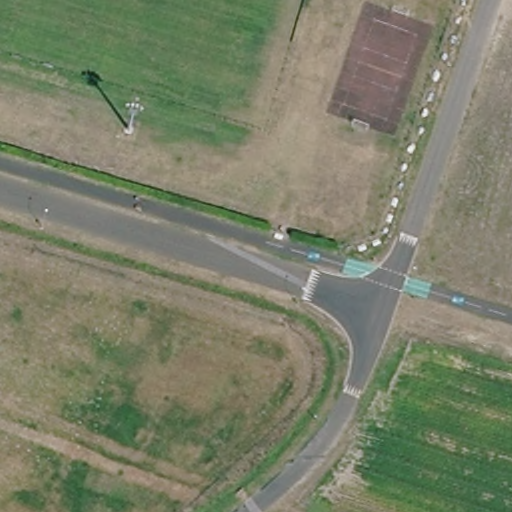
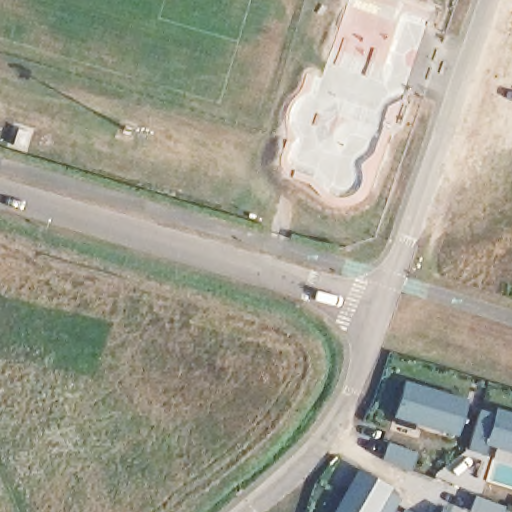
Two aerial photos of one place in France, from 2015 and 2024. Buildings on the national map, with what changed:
new [(467,398),(457,436),(393,417),(405,380),(467,398)]
new [(512,453),(486,445),(484,455),(467,449),(480,410),(495,414),(497,407),(512,412),(512,453)]
new [(358,468),(392,488),(390,492),(401,498),(394,512),(332,512),(358,468)]
new [(443,507),(451,512),(440,512),(443,507)]

